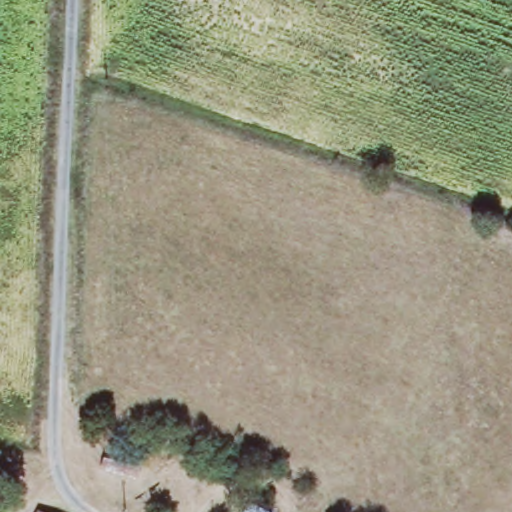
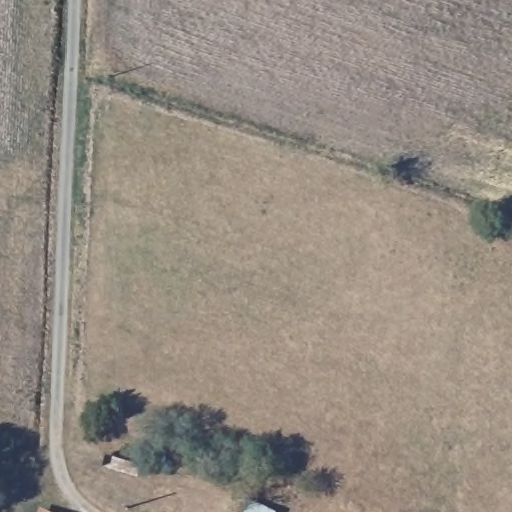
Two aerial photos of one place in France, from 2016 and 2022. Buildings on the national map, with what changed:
unchanged [(250,512),(252,508),(262,512),(250,512)]

